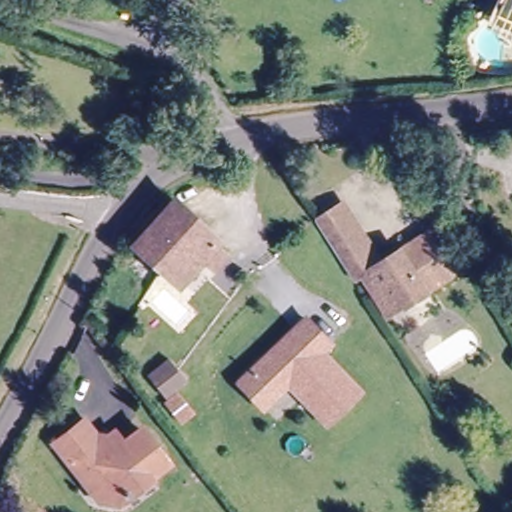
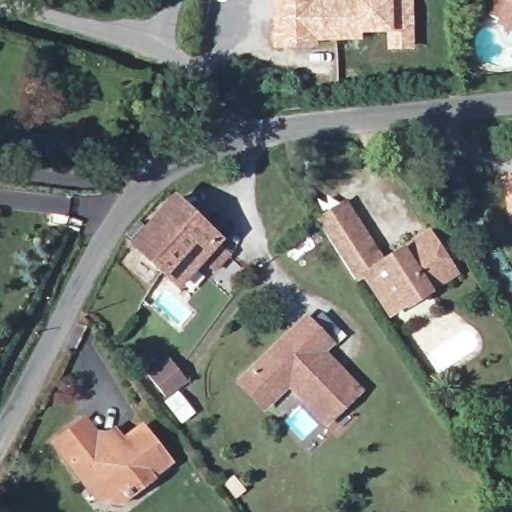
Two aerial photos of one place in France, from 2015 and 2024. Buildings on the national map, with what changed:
new [(387,50),(387,34),(362,35),(362,40),(317,41),(317,47),(273,49),(272,0),(412,0),(413,51),(387,50)]
unchanged [(493,0),(510,0),(511,0),(512,0),(512,25),(502,20),(505,14),(490,7),(493,0)]
new [(499,177),(512,175),(512,223),(508,223),(499,177)]
unchanged [(216,269),(201,255),(175,282),(128,237),(172,195),(217,238),(232,252),(216,269)]
unchanged [(364,266),(356,272),(328,225),(321,213),(345,197),(353,209),(383,256),(430,228),(454,266),(406,296),(390,306),(385,299),(364,266)]
unchanged [(237,381),(248,371),(304,318),(327,342),(317,352),(356,392),(324,421),(286,380),(271,395),(260,405),(237,381)]
unchanged [(165,356),(180,376),(158,392),(143,372),(165,356)]
unchanged [(159,463),(118,493),(115,510),(97,505),(47,440),(69,423),(76,417),(94,439),(105,430),(113,440),(132,427),(159,463)]

